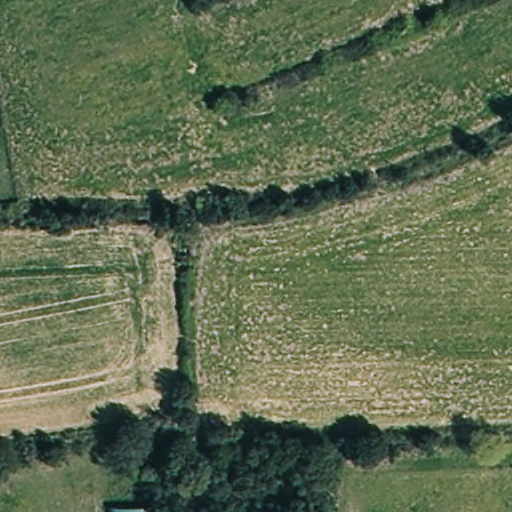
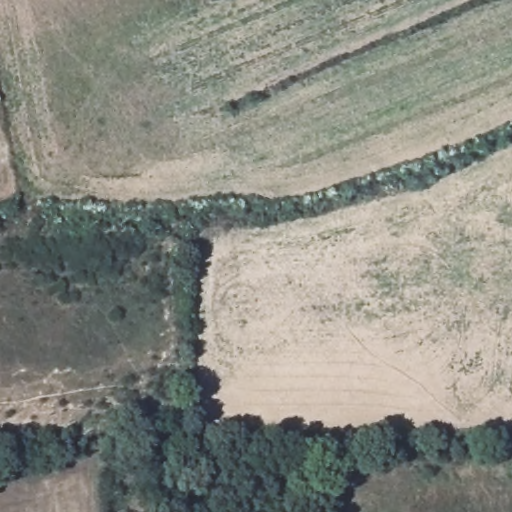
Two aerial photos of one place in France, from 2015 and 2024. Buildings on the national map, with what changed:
unchanged [(154,508),(154,512),(111,512),(111,507),(154,508)]

